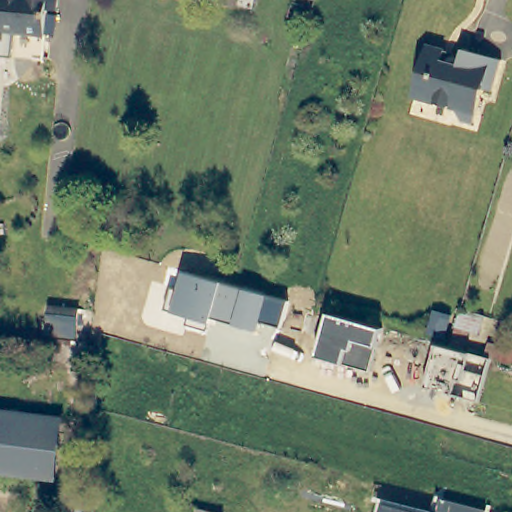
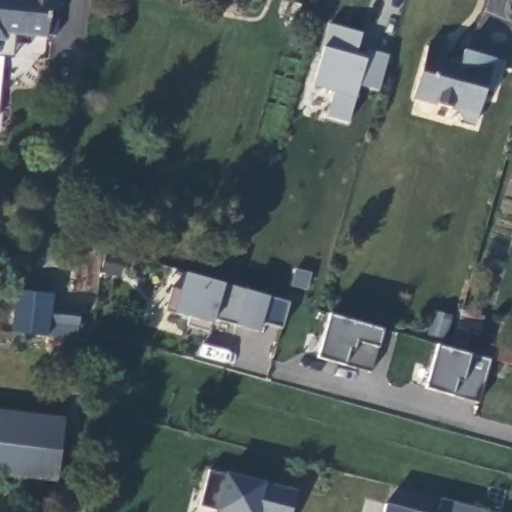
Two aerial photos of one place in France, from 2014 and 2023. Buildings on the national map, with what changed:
unchanged [(62,8),(51,8),(47,54),(0,49),(0,0),(63,0),(62,8)]
unchanged [(314,1),(309,0),(315,0),(314,1)]
new [(379,90),(359,83),(348,124),(325,117),(332,92),(312,86),(324,46),(329,22),(364,32),(355,55),(364,58),(366,48),(389,55),(379,90)]
unchanged [(465,47),(502,58),(493,89),(484,86),(474,121),(461,117),(455,106),(413,95),(428,45),(446,50),(444,57),(450,59),(450,57),(451,56),(452,55),(453,55),(454,55),(455,55),(457,55),(462,56),(465,47)]
unchanged [(261,324),(258,331),(211,320),(210,323),(172,312),(183,273),(222,283),(290,301),(282,327),(261,324)]
new [(53,304),(82,307),(77,340),(49,337),(9,331),(15,289),(54,293),(53,304)]
demolished [(58,303),(87,307),(86,322),(56,319),(58,303)]
unchanged [(473,351),(460,348),(450,345),(455,328),(456,328),(459,317),(462,307),(484,314),(473,351)]
unchanged [(434,308),(451,313),(445,336),(427,331),(434,308)]
unchanged [(369,371),(341,365),(317,357),(329,315),(383,328),(377,347),(369,371)]
unchanged [(512,363),(491,357),(495,342),(512,347),(512,363)]
unchanged [(477,403),(443,395),(443,392),(421,388),(434,345),(490,360),(477,403)]
unchanged [(17,476),(0,475),(0,411),(25,413),(64,417),(57,475),(57,480),(17,476)]
new [(218,512),(216,511),(198,506),(209,467),(225,471),(266,482),(298,490),(292,512),(218,512)]
unchanged [(438,510),(439,498),(486,510),(486,512),(378,512),(381,497),(438,510)]
demolished [(224,511),(224,512),(197,512),(199,505),(224,511)]

